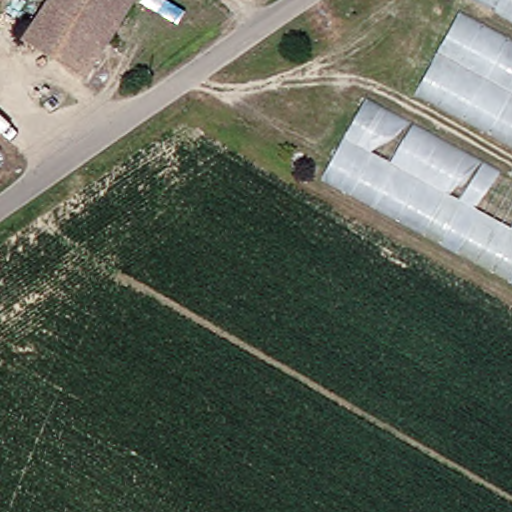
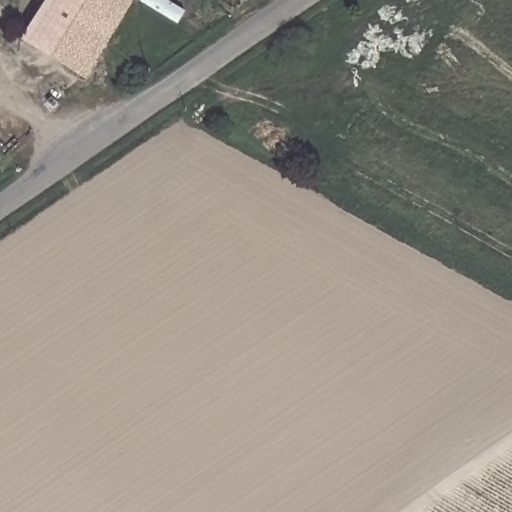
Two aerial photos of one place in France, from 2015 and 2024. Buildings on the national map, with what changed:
unchanged [(28,17),(35,6),(46,11),(52,0),(129,0),(96,56),(39,24),(28,17)]
demolished [(512,13),(487,0),(512,0),(512,13)]
demolished [(512,39),(512,138),(419,87),(461,12),(512,39)]
unchanged [(39,24),(96,56),(86,73),(30,40),(39,24)]
demolished [(366,100),(512,176),(512,273),(324,171),(366,100)]

